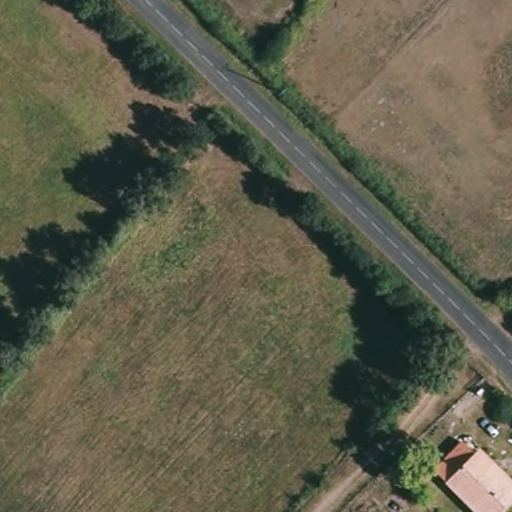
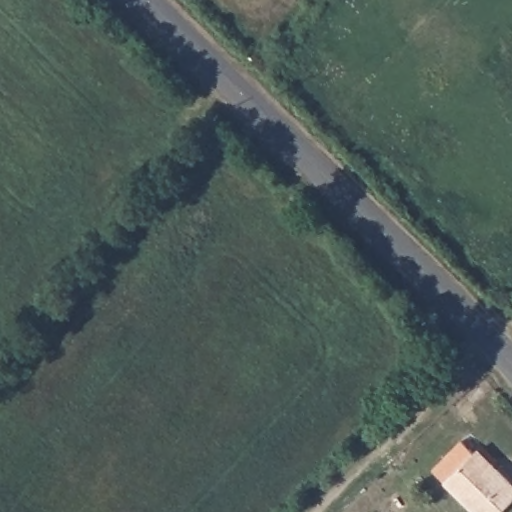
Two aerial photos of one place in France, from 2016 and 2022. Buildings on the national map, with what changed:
unchanged [(470,454),(475,449),(512,488),(512,498),(498,512),(470,512),(429,469),(458,441),(470,454)]

